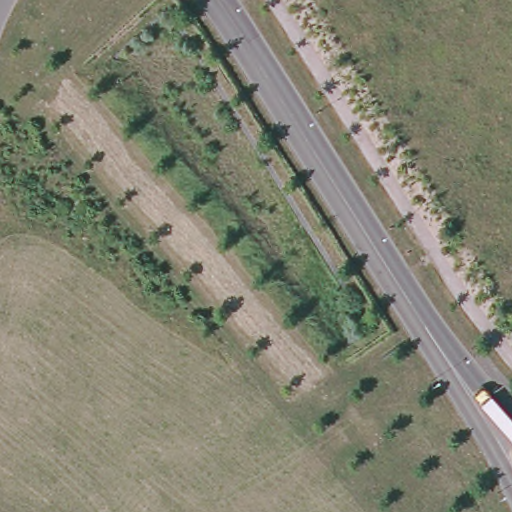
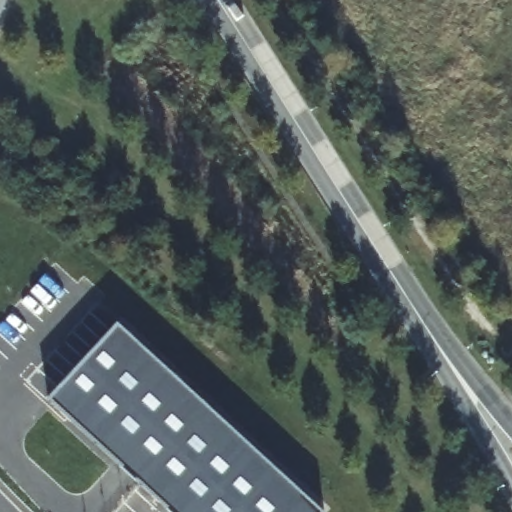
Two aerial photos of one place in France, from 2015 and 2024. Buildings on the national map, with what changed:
new [(50,401),(118,328),(318,512),(170,512),(50,401)]

